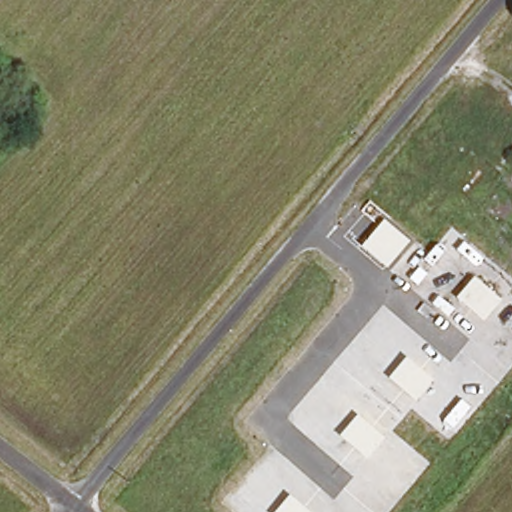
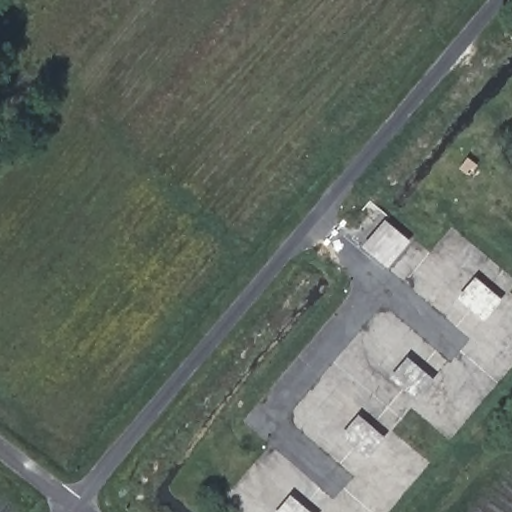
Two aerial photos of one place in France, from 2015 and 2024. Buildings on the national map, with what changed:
unchanged [(389,268),(364,246),(386,218),(412,241),(389,268)]
unchanged [(486,320),(460,298),(477,278),(503,300),(486,320)]
unchanged [(419,399),(392,376),(407,358),(436,378),(419,399)]
unchanged [(369,459),(344,436),(359,415),(387,438),(369,459)]
unchanged [(311,512),(278,512),(292,494),(311,512)]

